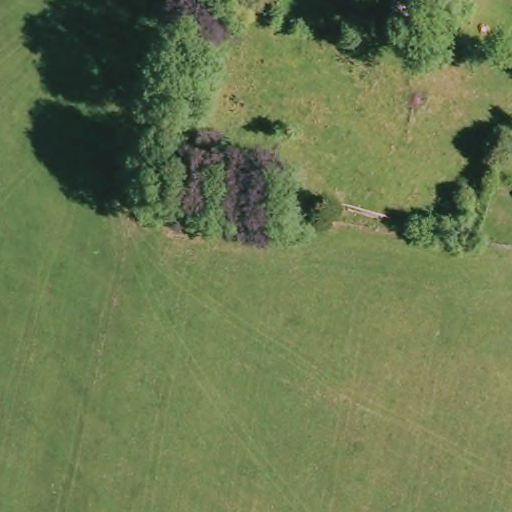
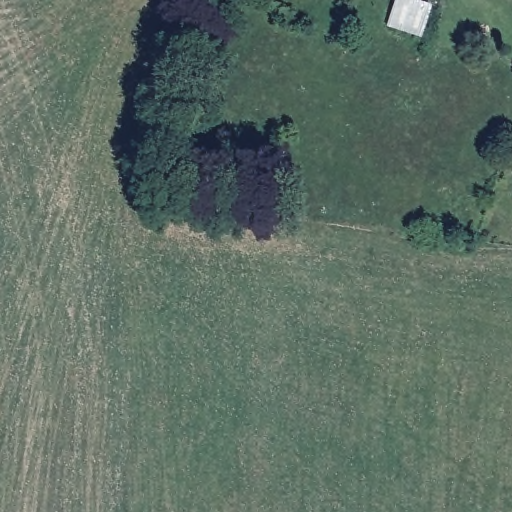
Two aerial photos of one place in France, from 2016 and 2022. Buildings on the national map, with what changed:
unchanged [(426,1),(417,30),(385,20),(392,0),(425,0),(426,1)]

